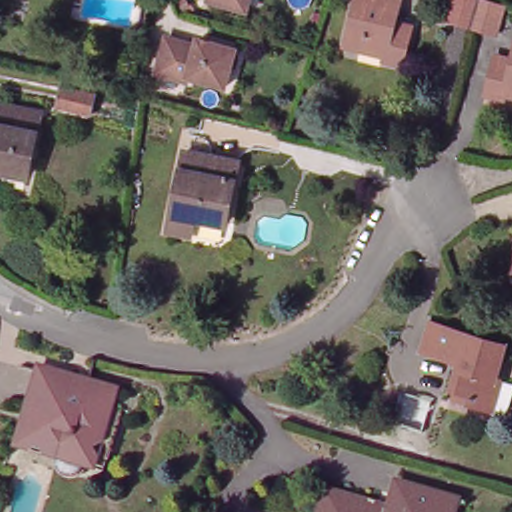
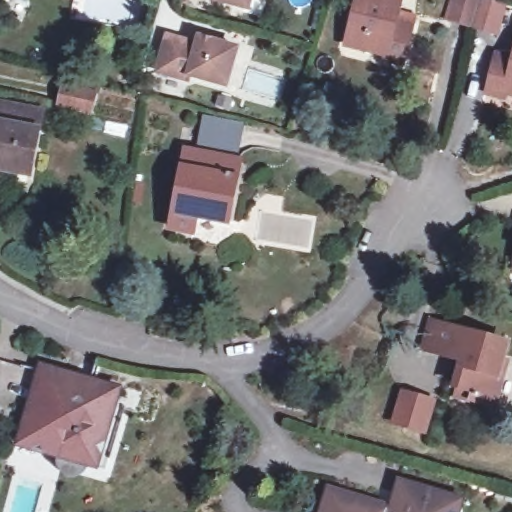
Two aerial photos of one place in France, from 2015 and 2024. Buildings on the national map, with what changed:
unchanged [(250,10),(212,0),(252,0),(250,10)]
unchanged [(405,70),(387,66),(389,55),(349,46),(360,0),(404,0),(397,30),(413,34),(405,70)]
unchanged [(497,33),(475,26),(450,18),(456,0),(492,0),(506,4),(497,33)]
unchanged [(228,88),(192,77),(190,83),(160,75),(169,37),(199,45),(200,38),(210,40),(239,49),(228,88)]
unchanged [(493,93),(502,57),(512,60),(512,91),(511,97),(493,93)]
unchanged [(66,86),(97,93),(92,113),(62,106),(66,86)]
unchanged [(38,124),(27,183),(0,178),(0,117),(38,124)]
unchanged [(197,221),(194,239),(173,234),(187,156),(224,163),(242,167),(238,185),(230,227),(197,221)]
unchanged [(457,388),(464,361),(437,354),(421,350),(426,332),(429,321),(505,343),(495,375),(500,376),(492,407),(470,401),(455,398),(457,388)]
unchanged [(38,371),(67,380),(70,387),(85,390),(87,384),(113,391),(108,405),(122,408),(115,433),(107,458),(104,470),(85,464),(84,468),(81,472),(77,475),(72,476),(67,476),(62,474),(58,470),(56,466),(55,461),(57,456),(17,444),(18,439),(38,371)]
new [(406,394),(437,402),(428,433),(398,425),(406,394)]
unchanged [(455,495),(451,512),(392,512),(402,479),(455,495)]
unchanged [(383,504),(381,510),(387,512),(328,512),(335,490),(383,504)]

